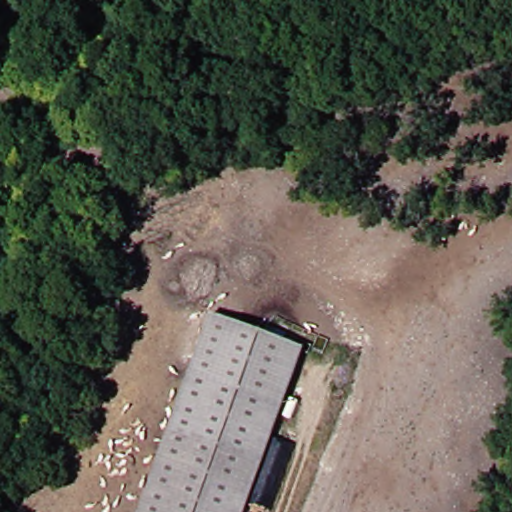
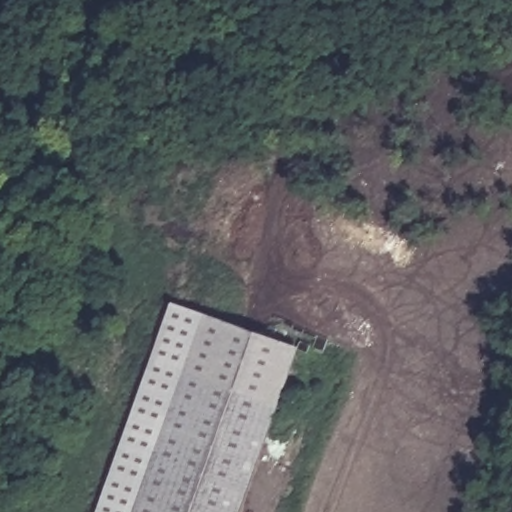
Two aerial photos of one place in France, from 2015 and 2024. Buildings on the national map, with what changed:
new [(99,512),(174,302),(217,316),(147,512),(99,512)]
unchanged [(292,343),(232,512),(147,512),(217,316),(292,343)]

